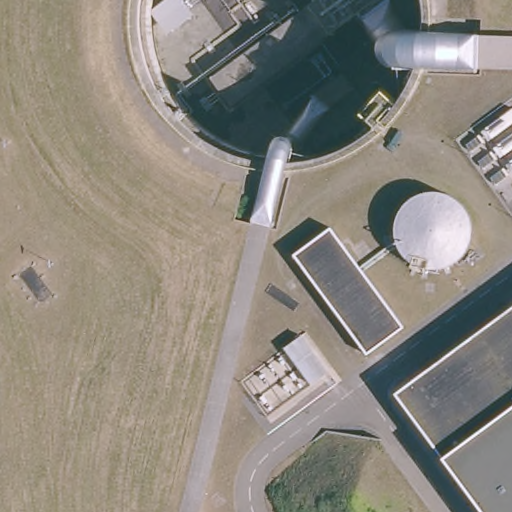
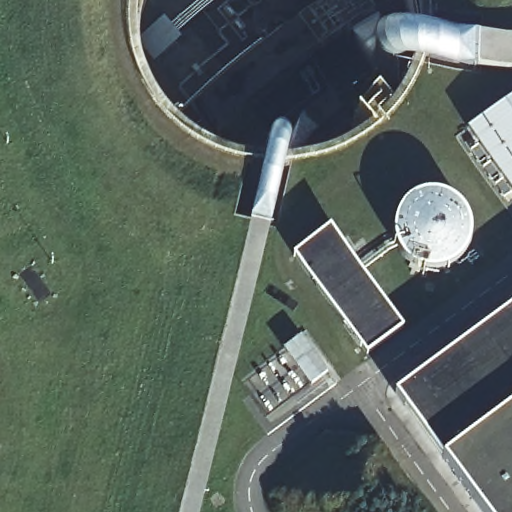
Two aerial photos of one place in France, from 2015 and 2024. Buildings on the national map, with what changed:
new [(512,102),(512,197),(470,133),(512,102)]
unchanged [(420,267),(409,261),(402,255),(397,247),(394,237),(394,225),(397,215),(400,210),(407,201),(416,195),(425,192),(440,192),(448,195),(460,203),(467,214),(471,225),(471,237),(467,247),(462,255),(458,260),(450,265),(440,269),(430,270),(420,267)]
unchanged [(366,355),(292,255),(330,228),(403,327),(366,355)]
unchanged [(483,512),(395,393),(512,307),(512,512),(483,512)]

